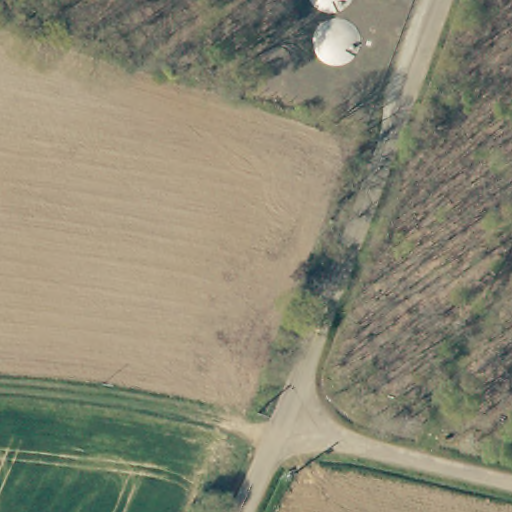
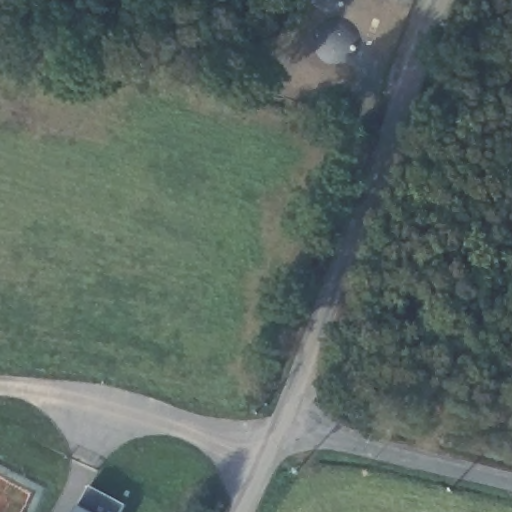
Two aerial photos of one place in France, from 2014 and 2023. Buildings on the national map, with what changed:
new [(124,506),(121,512),(77,512),(79,510),(89,489),(124,506)]

